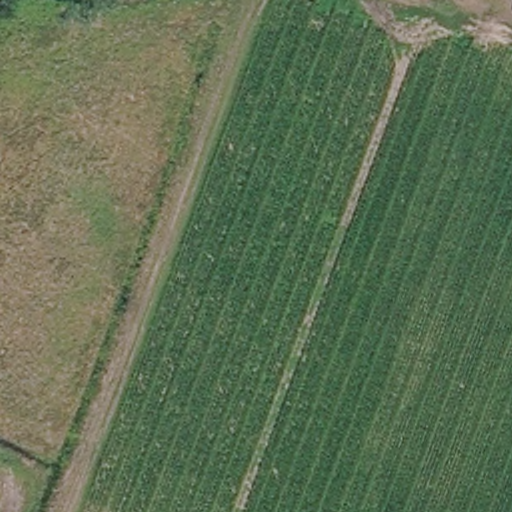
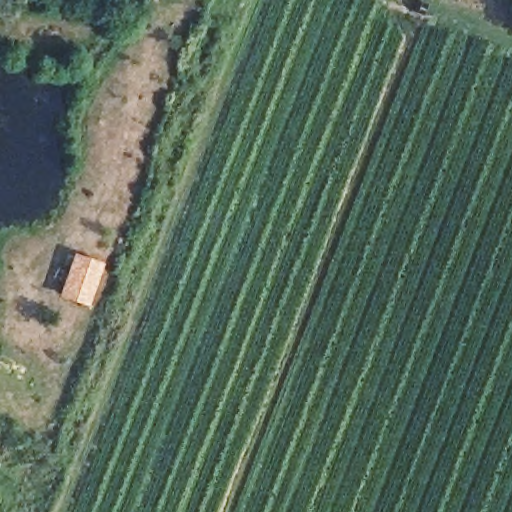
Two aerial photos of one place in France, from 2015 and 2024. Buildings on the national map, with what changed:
new [(89,306),(60,296),(75,253),(104,264),(89,306)]

